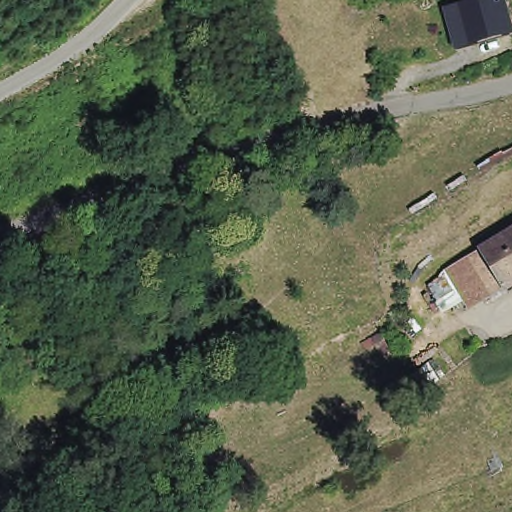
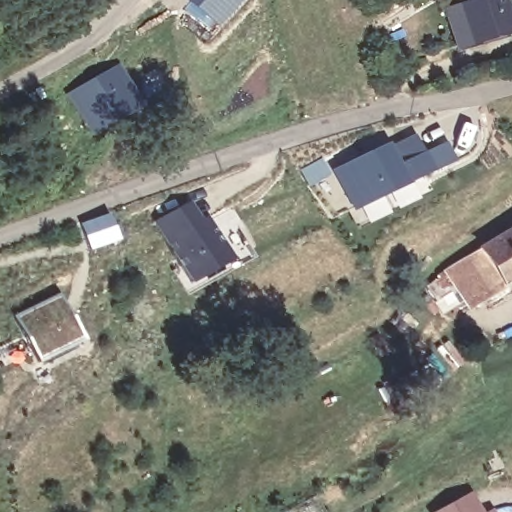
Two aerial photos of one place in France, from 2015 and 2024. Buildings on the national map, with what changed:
new [(183,0),(240,0),(212,26),(183,0)]
unchanged [(449,16),(463,13),(504,1),(512,31),(512,37),(473,48),(459,52),(449,16)]
new [(91,140),(65,95),(118,64),(144,109),(91,140)]
new [(432,175),(355,215),(332,175),(416,136),(432,175)]
new [(332,175),(309,186),(300,172),(322,159),(332,175)]
new [(195,199),(234,266),(185,293),(152,227),(195,199)]
unchanged [(500,292),(475,250),(512,227),(512,285),(500,292)]
unchanged [(479,304),(465,312),(440,270),(475,250),(500,292),(497,293),(479,304)]
new [(79,345),(31,365),(15,314),(57,291),(79,345)]
new [(485,512),(437,512),(475,492),(485,512)]
new [(494,512),(490,512),(492,510),(494,512)]

